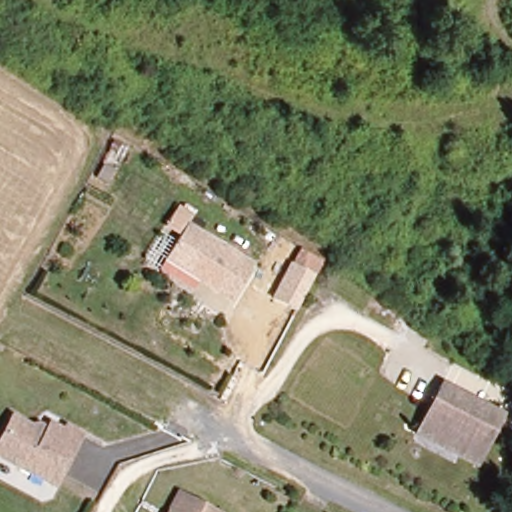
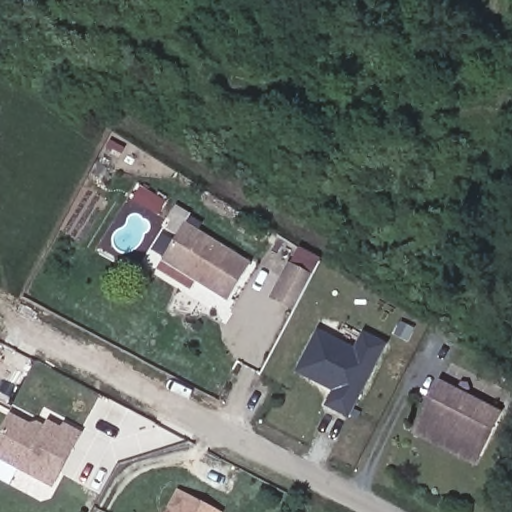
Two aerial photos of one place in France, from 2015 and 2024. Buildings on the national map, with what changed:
unchanged [(223,298),(157,256),(180,223),(244,264),(223,298)]
unchanged [(294,266),(302,252),(323,265),(316,278),(297,314),(275,302),(294,266)]
new [(330,392),(293,373),(316,328),(354,347),(363,334),(368,332),(387,342),(347,419),(326,405),(330,392)]
unchanged [(412,432),(416,425),(437,385),(496,416),(473,456),(470,463),(412,432)]
unchanged [(46,484),(0,459),(0,424),(6,414),(36,433),(42,421),(57,430),(59,424),(73,432),(46,484)]
unchanged [(164,511),(175,491),(214,512),(164,512),(164,511)]

